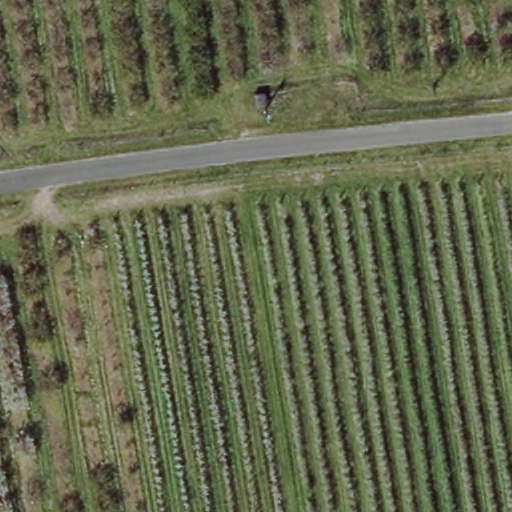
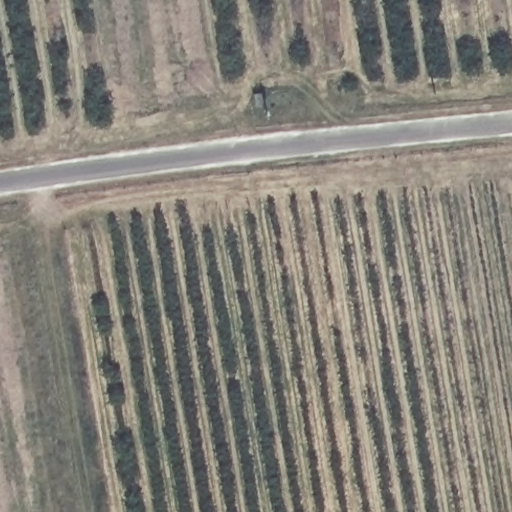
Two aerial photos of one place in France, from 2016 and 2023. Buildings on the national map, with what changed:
unchanged [(255,105),(254,93),(260,93),(265,92),(268,103),(262,105),(255,105)]

